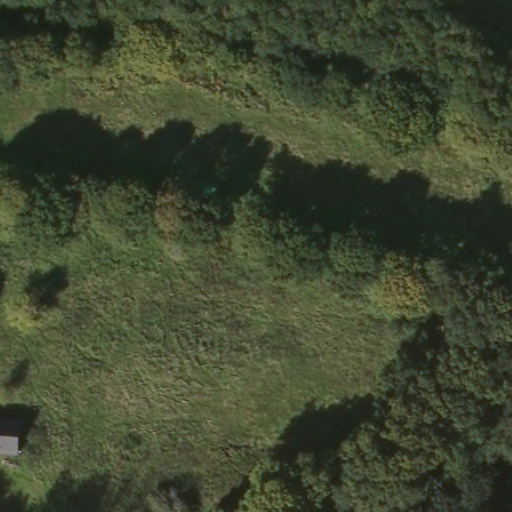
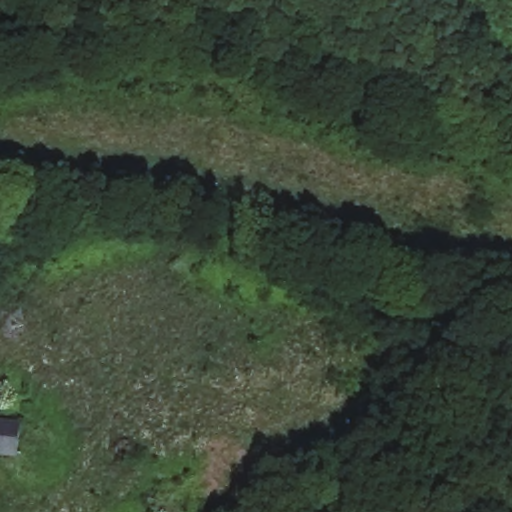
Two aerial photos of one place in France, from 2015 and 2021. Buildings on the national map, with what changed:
unchanged [(20,417),(17,449),(0,447),(0,415),(20,417)]

